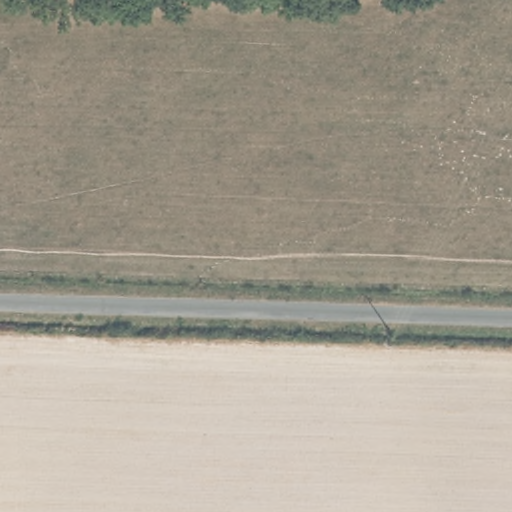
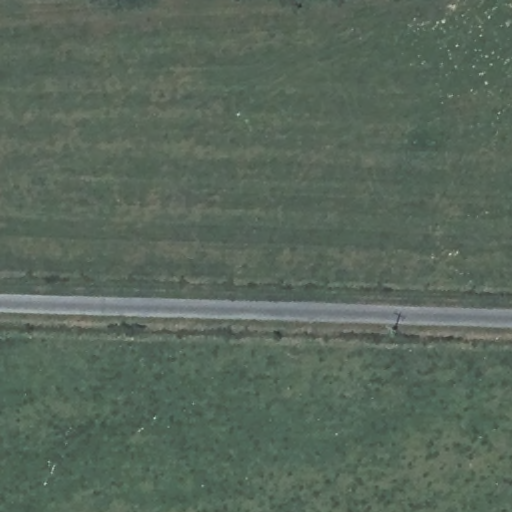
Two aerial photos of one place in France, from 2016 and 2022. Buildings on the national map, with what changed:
[]

